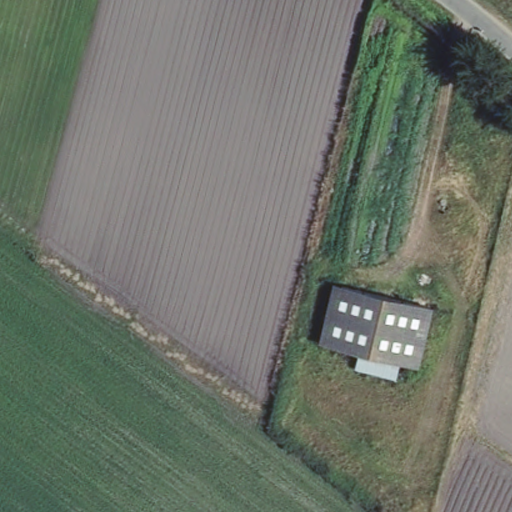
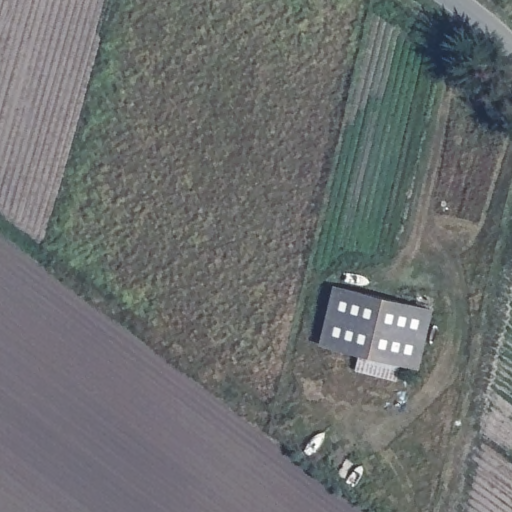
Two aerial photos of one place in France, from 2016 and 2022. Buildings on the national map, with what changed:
unchanged [(423,369),(321,347),(335,285),(437,308),(423,369)]

